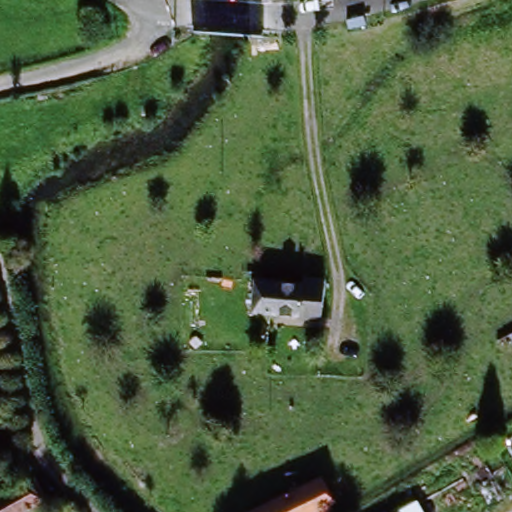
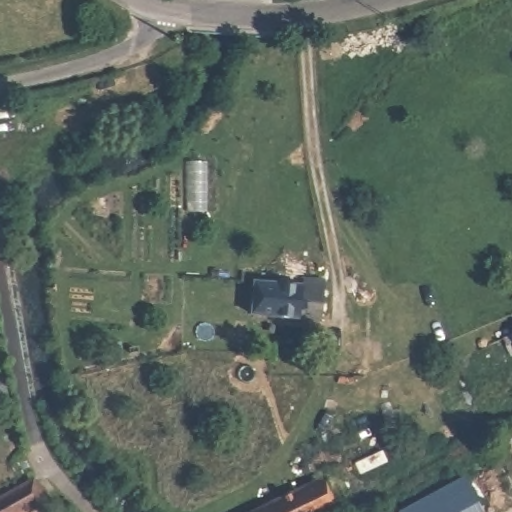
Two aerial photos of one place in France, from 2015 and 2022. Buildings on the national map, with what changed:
unchanged [(304,281),(325,283),(322,319),(254,315),(256,284),(304,288),(304,281)]
unchanged [(497,465),(484,471),(476,457),(490,447),(497,465)]
new [(400,512),(464,477),(487,512),(400,512)]
unchanged [(330,503),(331,506),(322,512),(272,512),(319,484),(330,503)]
unchanged [(0,512),(0,502),(29,485),(38,501),(19,512),(0,512)]

